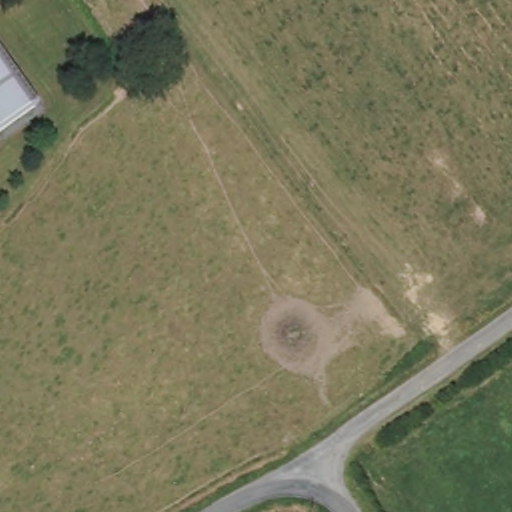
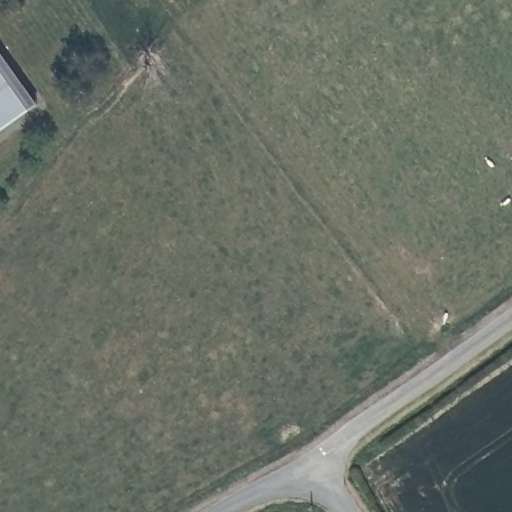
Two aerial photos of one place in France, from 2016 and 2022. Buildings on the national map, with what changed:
unchanged [(41,98),(0,128),(0,41),(41,98)]

